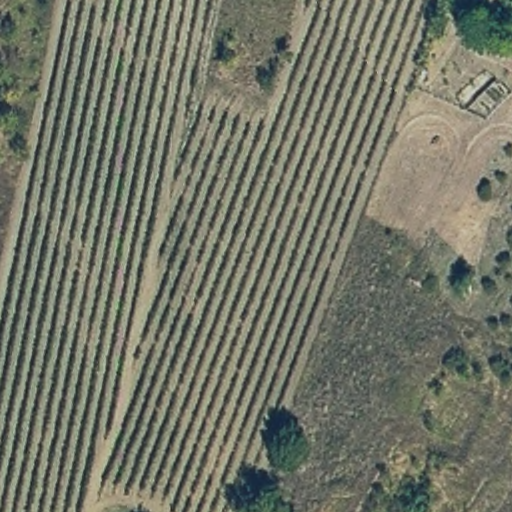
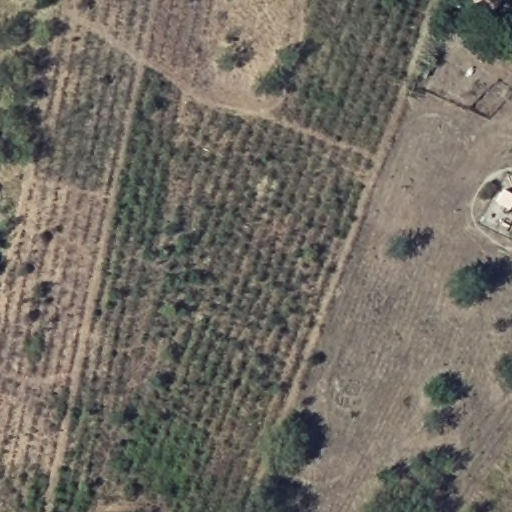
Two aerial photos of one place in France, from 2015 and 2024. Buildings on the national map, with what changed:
unchanged [(474,0),(472,4),(467,0),(474,0)]

